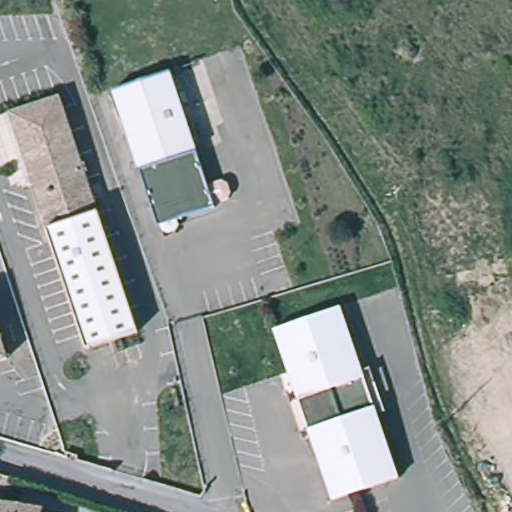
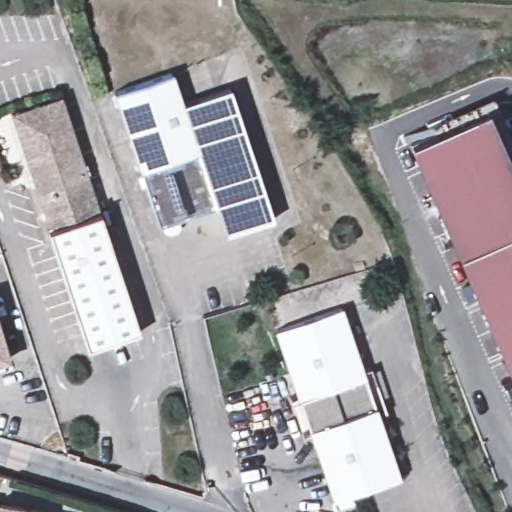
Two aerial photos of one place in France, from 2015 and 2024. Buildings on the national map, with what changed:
unchanged [(155,208),(118,92),(175,74),(213,192),(227,188),(234,188),(237,198),(232,202),(218,206),(218,210),(181,222),(161,228),(155,208)]
new [(218,206),(230,202),(232,202),(237,198),(234,188),(227,188),(213,192),(184,101),(229,87),(273,219),(225,233),(218,210),(218,206)]
unchanged [(21,132),(14,112),(64,94),(71,114),(21,132)]
new [(457,256),(407,146),(436,134),(433,125),(493,97),(512,142),(512,381),(457,256)]
unchanged [(147,329),(95,347),(53,228),(54,227),(21,132),(71,114),(147,329)]
unchanged [(291,369),(277,326),(344,305),(363,367),(398,478),(332,499),(291,369)]
unchanged [(0,363),(0,327),(11,359),(0,363)]
unchanged [(0,512),(0,508),(26,512),(0,512)]

